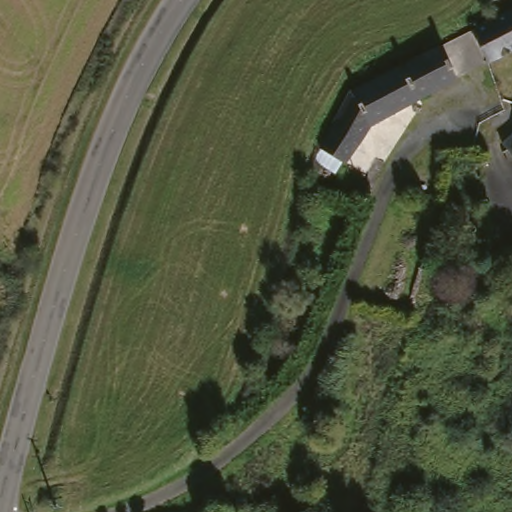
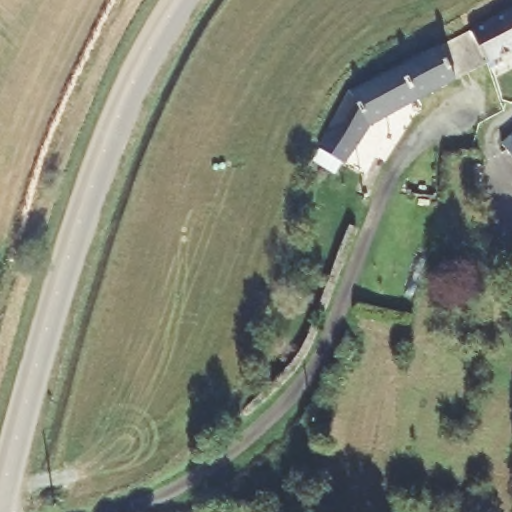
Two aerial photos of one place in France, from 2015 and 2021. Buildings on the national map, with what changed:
unchanged [(501,57),(481,30),(512,16),(512,51),(501,57)]
unchanged [(437,49),(454,80),(420,98),(403,67),(437,49)]
unchanged [(337,135),(358,91),(403,67),(420,98),(377,121),(352,158),(332,149),(337,135)]

